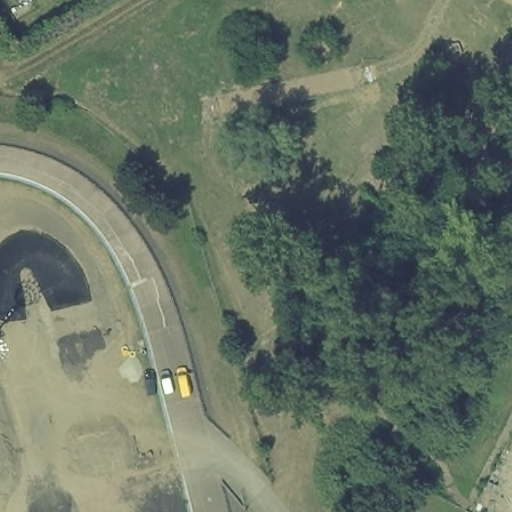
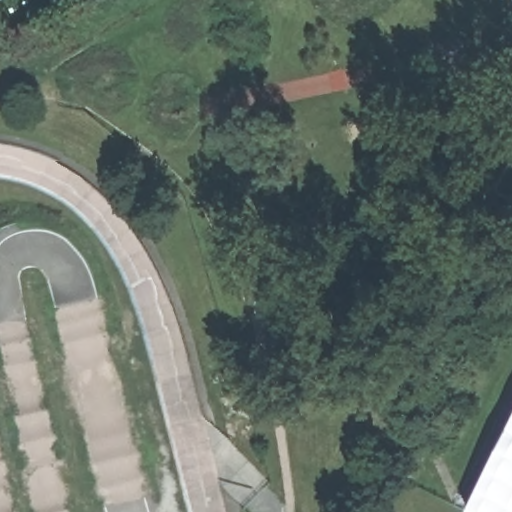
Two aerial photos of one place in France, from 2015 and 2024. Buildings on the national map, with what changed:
new [(482,512),(466,504),(512,409),(512,512),(482,512)]

